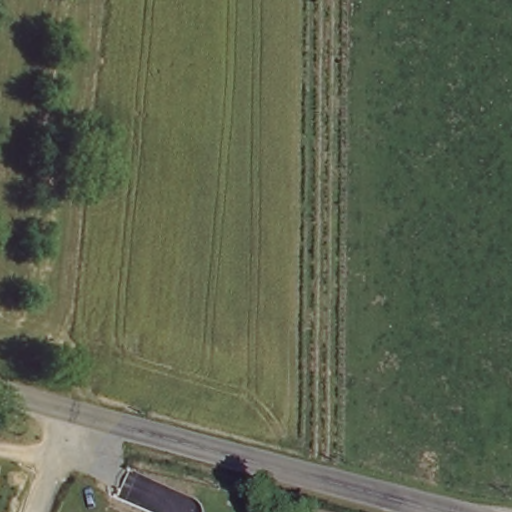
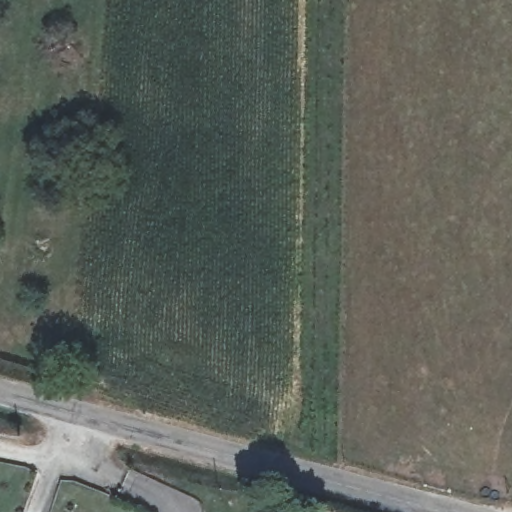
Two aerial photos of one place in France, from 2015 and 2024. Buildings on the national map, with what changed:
[]

